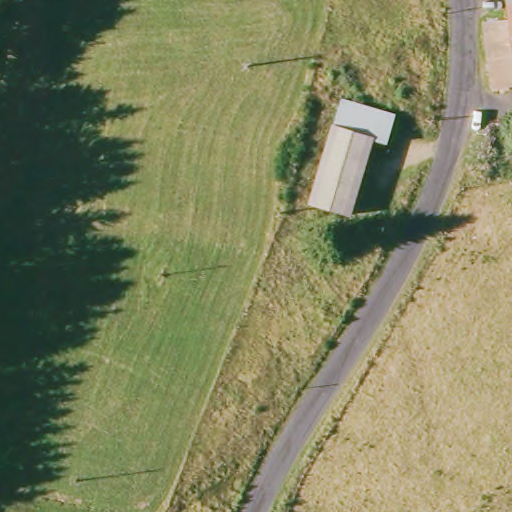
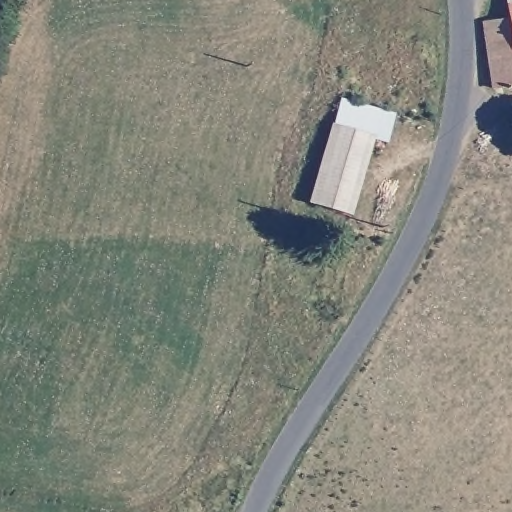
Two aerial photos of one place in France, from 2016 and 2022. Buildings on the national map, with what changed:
unchanged [(494,90),(482,26),(508,22),(506,12),(503,0),(512,0),(512,88),(494,90)]
unchanged [(338,97),(389,115),(379,142),(366,139),(329,125),(338,97)]
unchanged [(366,139),(341,212),(303,200),(329,125),(366,139)]

